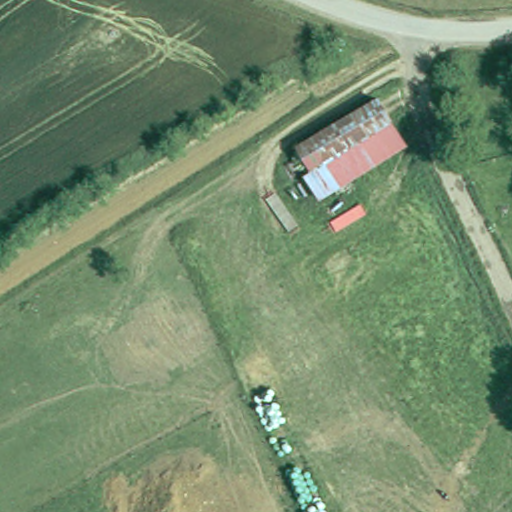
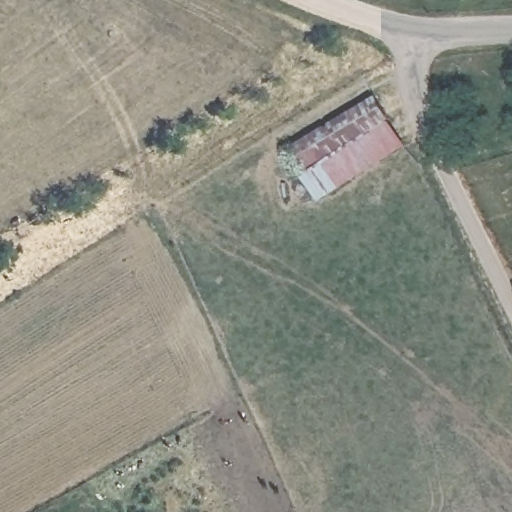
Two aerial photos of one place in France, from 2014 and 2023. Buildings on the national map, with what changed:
unchanged [(298,150),(378,105),(390,127),(402,150),(322,195),(310,174),(298,150)]

